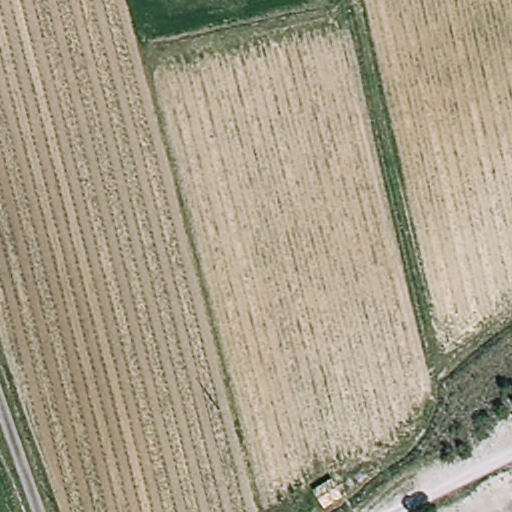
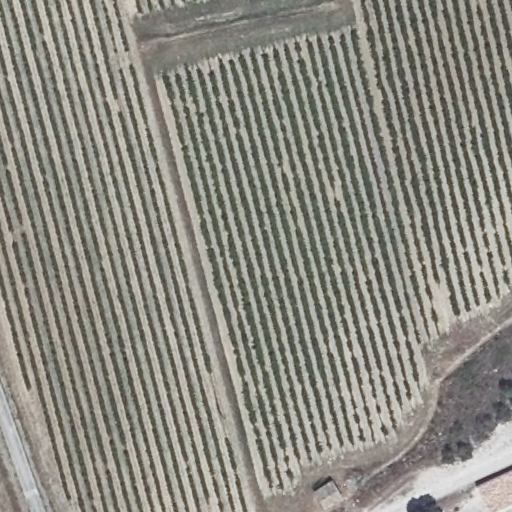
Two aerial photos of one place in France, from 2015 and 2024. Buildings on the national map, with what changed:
new [(476,486),(512,469),(512,500),(489,512),(476,486)]
unchanged [(308,490),(328,478),(337,494),(328,501),(318,508),(308,490)]

